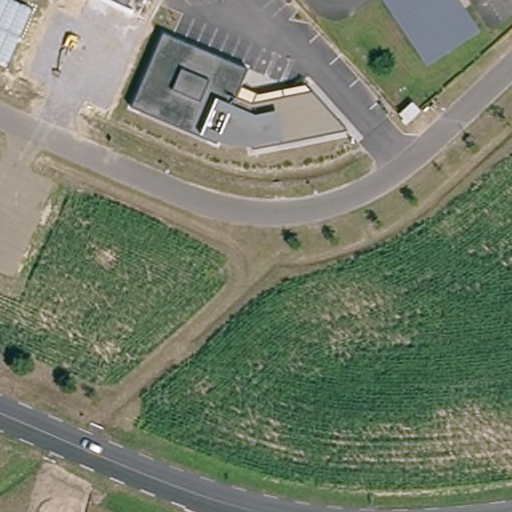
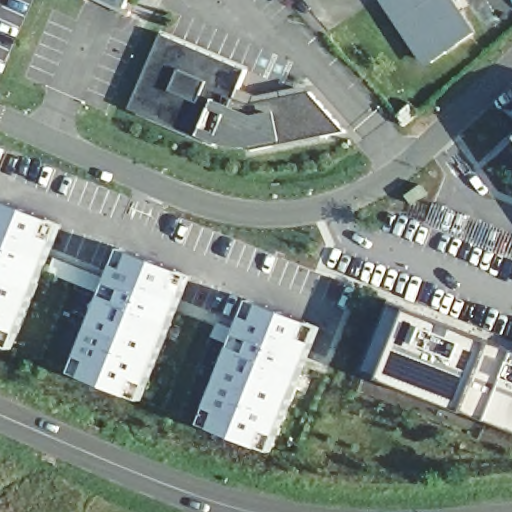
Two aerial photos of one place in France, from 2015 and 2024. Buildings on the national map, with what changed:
unchanged [(128,7),(112,0),(131,0),(128,7)]
unchanged [(458,12),(461,10),(476,30),(432,60),(390,0),(450,0),(458,12)]
unchanged [(249,68),(241,87),(257,94),(307,84),(346,130),(253,150),(252,145),(247,146),(235,146),(219,141),(217,144),(132,107),(165,34),(249,68)]
new [(0,343),(0,199),(63,224),(58,240),(21,333),(14,348),(0,343)]
new [(87,377),(74,373),(81,356),(118,263),(125,248),(136,253),(182,271),(193,276),(187,292),(151,385),(144,400),(87,377)]
new [(216,428),(205,423),(211,407),(247,314),(253,300),(265,303),(314,323),(323,328),(317,343),(281,436),(274,451),(216,428)]
new [(386,377),(367,369),(396,303),(413,309),(496,342),(512,349),(512,429),(468,410),(386,377)]

